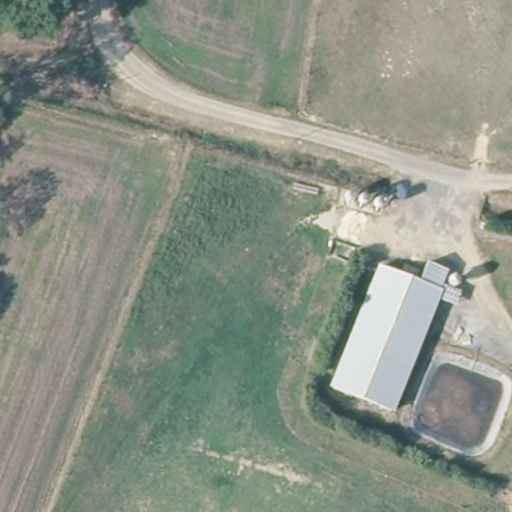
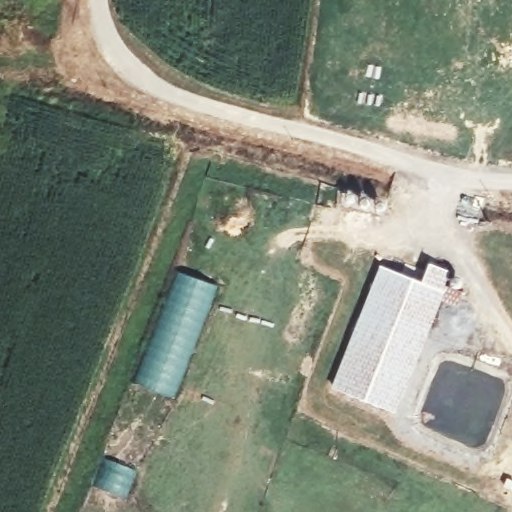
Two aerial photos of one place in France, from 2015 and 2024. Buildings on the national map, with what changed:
unchanged [(410,355),(386,410),(330,386),(350,339),(382,266),(419,282),(427,262),(447,271),(410,355)]
new [(175,270),(217,285),(174,398),(132,381),(175,270)]
unchanged [(450,323),(433,316),(445,290),(461,297),(450,323)]
new [(103,457),(136,470),(125,497),(92,483),(103,457)]

